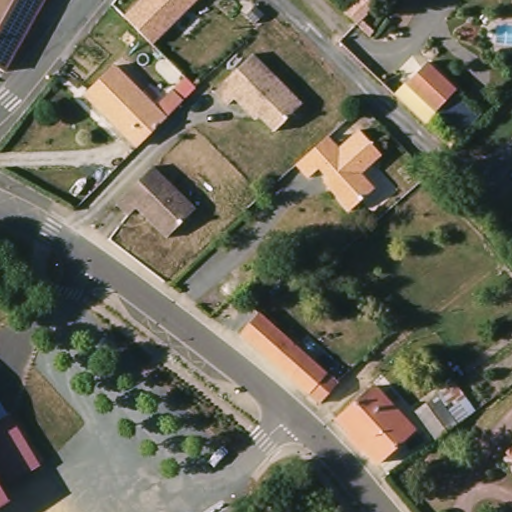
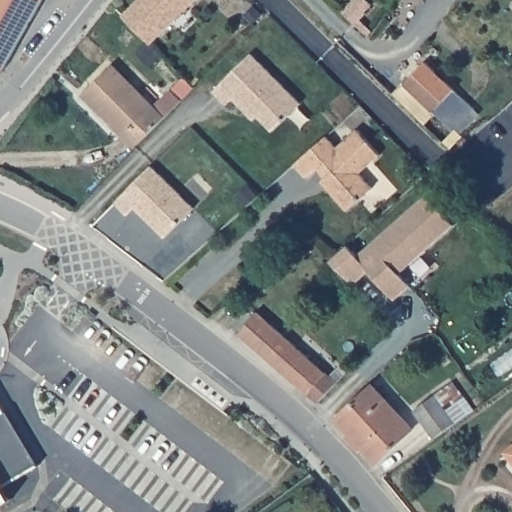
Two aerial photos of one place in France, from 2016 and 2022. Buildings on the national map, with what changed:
unchanged [(44,0),(5,70),(0,80),(0,0),(44,0)]
unchanged [(142,0),(196,0),(153,44),(126,16),(142,0)]
unchanged [(355,0),(376,0),(369,7),(370,8),(360,19),(348,7),(355,0)]
unchanged [(246,8),(253,1),(264,12),(257,19),(246,8)]
unchanged [(251,111),(247,115),(232,100),(226,107),(213,94),(251,55),(301,105),(273,133),(251,111)]
unchanged [(428,60),(456,87),(433,111),(404,85),(428,60)]
unchanged [(82,92),(111,63),(152,105),(170,87),(181,98),(134,144),(82,92)]
unchanged [(339,201),(327,187),(331,184),(317,168),(306,178),(294,165),(308,153),(326,137),(337,148),(357,130),(379,155),(359,173),(364,179),(373,188),(348,211),(339,201)]
unchanged [(138,206),(130,214),(118,202),(155,165),(198,207),(168,236),(138,206)]
new [(348,244),(358,255),(426,195),(453,225),(399,273),(410,285),(394,300),(369,271),(353,284),(330,260),(348,244)]
unchanged [(257,314),(336,384),(318,404),(238,335),(257,314)]
unchanged [(414,411),(454,383),(474,411),(435,440),(414,411)]
unchanged [(413,430),(377,464),(336,420),(373,386),(413,430)]
unchanged [(2,488),(9,499),(0,504),(0,400),(8,413),(10,412),(37,458),(41,464),(35,468),(2,488)]
unchanged [(512,455),(512,459),(510,457),(512,455)]

